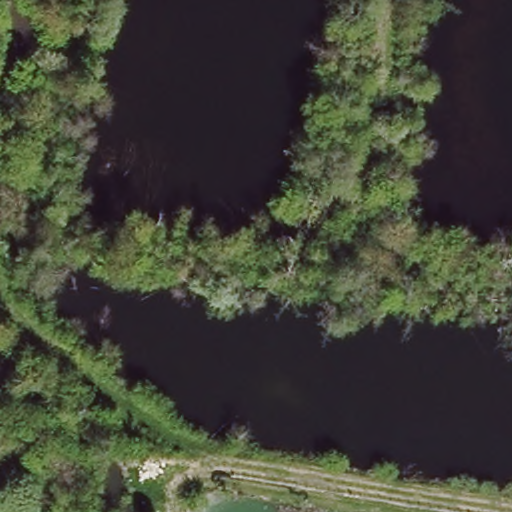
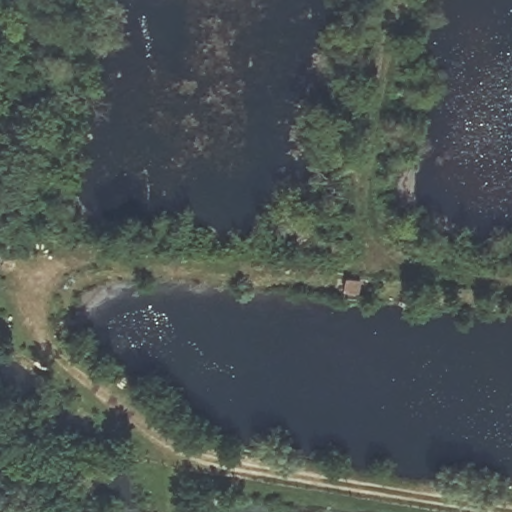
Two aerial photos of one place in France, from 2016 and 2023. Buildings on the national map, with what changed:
unchanged [(303,231),(305,220),(321,221),(318,244),(300,242),(303,231)]

